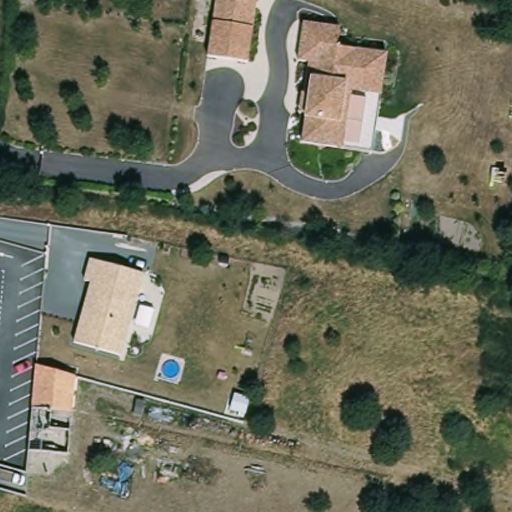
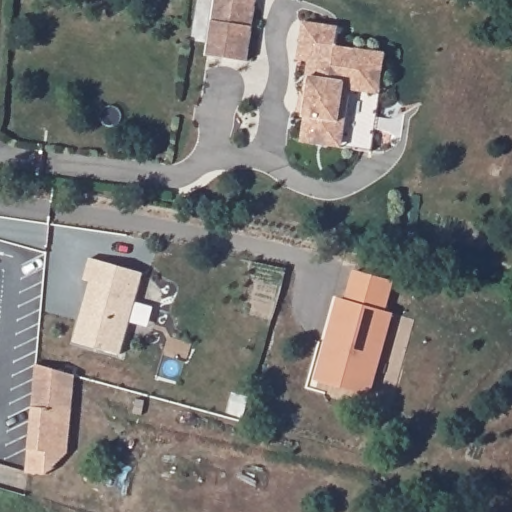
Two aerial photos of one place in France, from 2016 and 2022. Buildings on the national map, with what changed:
unchanged [(204,54),(213,0),(256,0),(248,61),(204,54)]
unchanged [(297,60),(301,21),(339,27),(335,46),(385,53),(380,94),(351,90),(343,149),(298,142),(308,63),(297,60)]
unchanged [(146,270),(124,356),(74,339),(92,279),(84,278),(90,255),(146,270)]
new [(340,298),(348,300),(356,270),(392,280),(383,310),(391,313),(368,396),(317,381),(327,344),(330,335),(340,298)]
unchanged [(76,376),(69,454),(27,451),(35,366),(76,376)]

